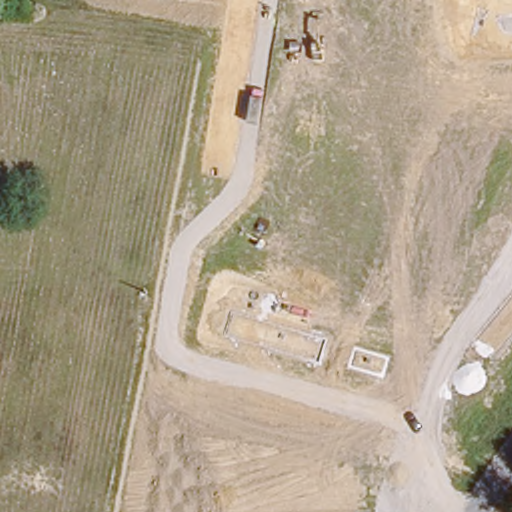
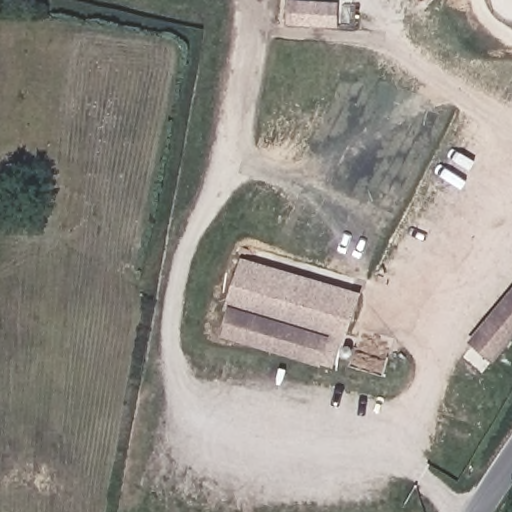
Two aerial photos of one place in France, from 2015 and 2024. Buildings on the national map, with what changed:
new [(286,0),(304,0),(340,2),(338,27),(285,25),(286,0)]
new [(361,293),(344,345),(341,345),(334,369),(322,366),(329,337),(228,306),(241,258),(361,293)]
new [(466,341),(512,288),(512,342),(494,364),(466,341)]
new [(321,367),(219,336),(228,306),(329,337),(321,367)]

